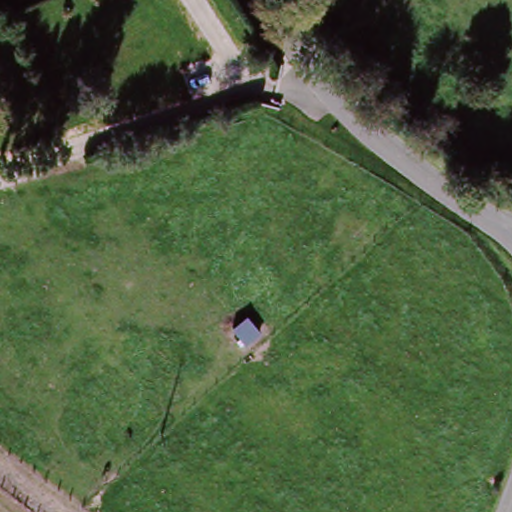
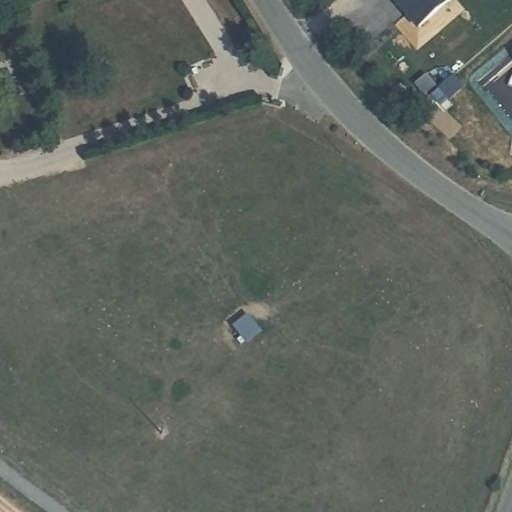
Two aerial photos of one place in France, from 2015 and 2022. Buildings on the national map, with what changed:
new [(450,2),(418,29),(400,6),(397,9),(389,0),(448,0),(450,2)]

